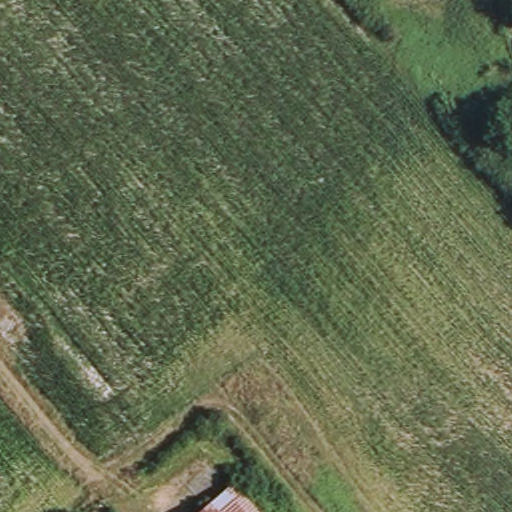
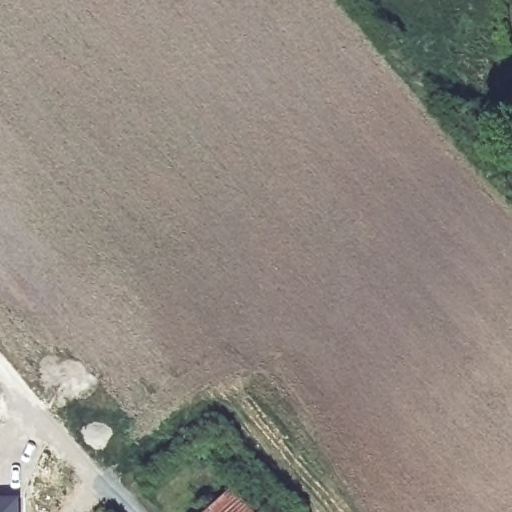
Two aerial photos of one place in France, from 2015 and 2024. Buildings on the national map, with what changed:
unchanged [(229,492),(247,512),(206,512),(229,492)]
new [(15,498),(15,512),(0,512),(0,499),(15,498)]

